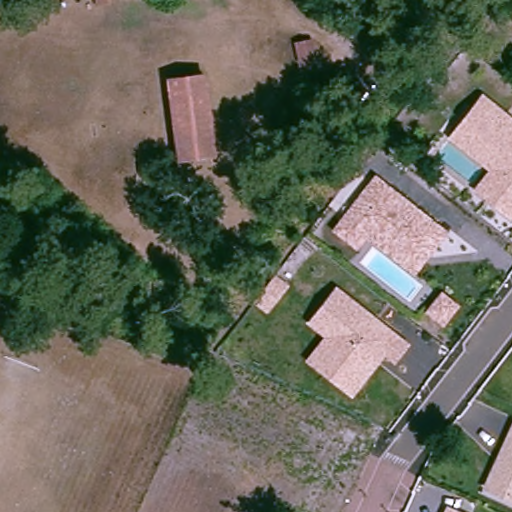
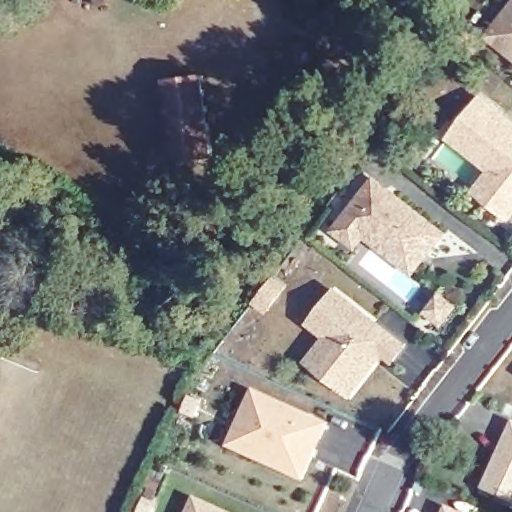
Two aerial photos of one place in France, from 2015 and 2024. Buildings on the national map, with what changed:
unchanged [(107,5),(98,6),(97,0),(107,0),(107,5)]
new [(512,4),(512,57),(486,37),(512,4)]
unchanged [(313,60),(300,63),(297,47),(310,44),(313,60)]
unchanged [(218,150),(184,155),(175,77),(209,73),(218,150)]
unchanged [(512,116),(512,220),(473,190),(487,170),(446,140),(482,94),(512,116)]
unchanged [(375,174),(450,231),(415,275),(366,239),(356,250),(331,230),(375,174)]
unchanged [(272,280),(285,290),(280,298),(267,314),(254,303),(265,287),(272,280)]
unchanged [(306,323),(335,285),(411,345),(395,367),(382,358),(351,399),(305,362),(323,337),(306,323)]
new [(255,395),(327,427),(320,443),(317,451),(304,480),(270,466),(231,449),(240,429),(255,395)]
unchanged [(512,430),(512,504),(483,491),(512,430)]
new [(218,512),(190,512),(195,501),(218,512)]
unchanged [(444,512),(446,505),(461,512),(444,512)]

